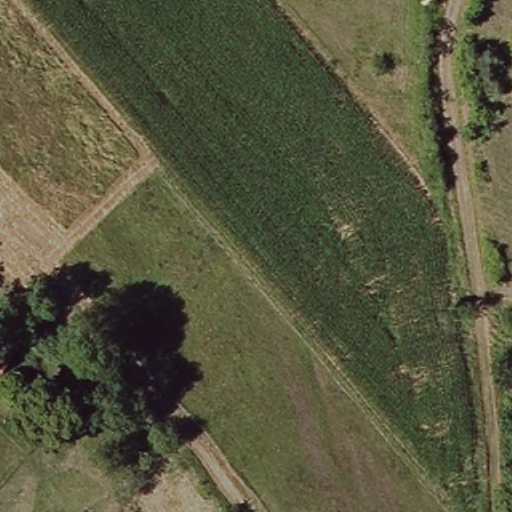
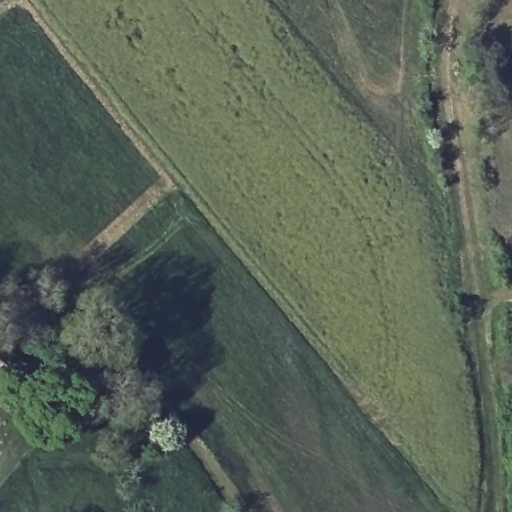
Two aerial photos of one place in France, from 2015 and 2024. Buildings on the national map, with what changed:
unchanged [(10,358),(0,370),(0,330),(16,345),(7,355),(10,358)]

